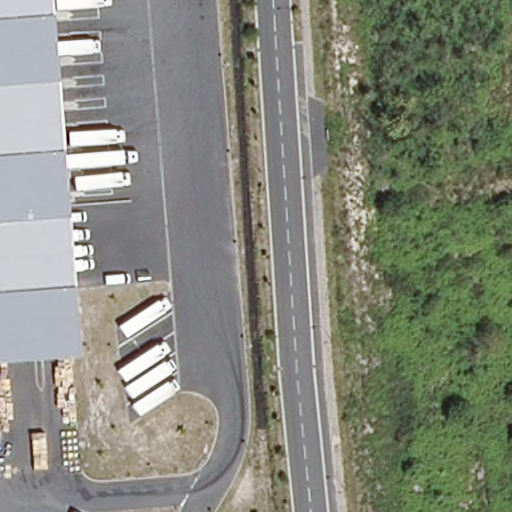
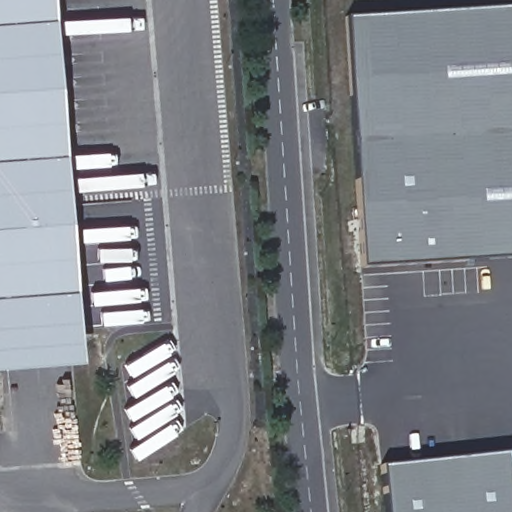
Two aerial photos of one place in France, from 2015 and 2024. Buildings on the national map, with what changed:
unchanged [(0,363),(0,0),(54,0),(81,357),(0,363)]
new [(512,7),(512,253),(369,263),(353,16),(512,7)]
new [(512,494),(512,512),(392,512),(387,466),(509,453),(512,494)]

